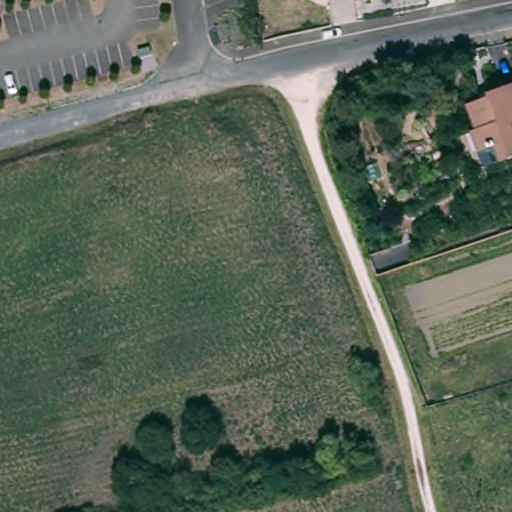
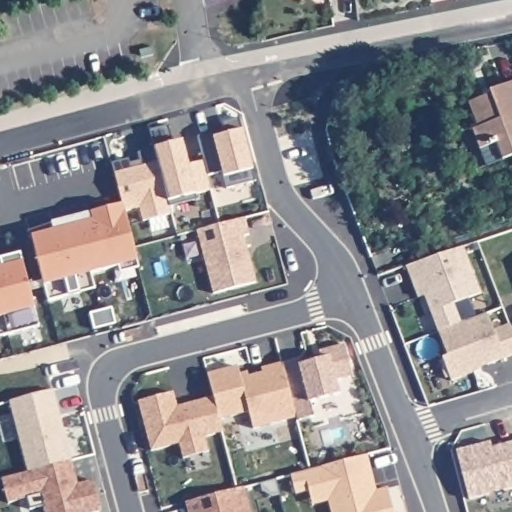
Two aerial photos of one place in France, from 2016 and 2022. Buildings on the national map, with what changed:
unchanged [(497,160),(491,144),(474,150),(467,130),(472,128),(462,103),(484,96),(483,91),(512,81),(512,154),(497,160)]
new [(111,163),(127,159),(129,164),(139,161),(138,152),(153,148),(149,130),(168,126),(172,142),(182,141),(188,167),(204,162),(198,137),(219,131),(217,124),(239,118),(242,130),(253,169),(254,181),(226,188),(223,176),(222,171),(207,175),(210,189),(195,192),(197,199),(169,207),(170,213),(143,220),(140,206),(123,212),(121,206),(111,163)]
new [(31,236),(52,231),(50,223),(121,206),(123,212),(136,261),(89,272),(94,287),(47,300),(44,286),(31,236)]
new [(242,220),(247,236),(242,237),(254,283),(212,295),(195,232),(242,220)]
new [(423,296),(417,297),(405,266),(462,247),(479,293),(453,302),(461,322),(436,332),(423,296)]
new [(0,260),(19,255),(38,326),(0,335),(0,260)]
new [(479,370),(449,382),(441,358),(446,357),(436,332),(484,313),(492,331),(508,325),(512,335),(512,354),(484,365),(479,367),(479,370)]
new [(296,360),(298,366),(319,360),(317,352),(343,346),(351,377),(334,381),(338,396),(309,403),(313,417),(295,422),(294,419),(280,365),(296,360)]
new [(238,376),(245,373),(246,377),(261,374),(260,370),(280,365),(294,419),(251,430),(247,413),(218,421),(205,375),(235,367),(238,376)]
new [(50,392),(69,462),(25,473),(7,403),(50,392)]
new [(173,392),(177,406),(212,397),(218,421),(220,432),(203,437),(207,451),(182,457),(178,443),(150,450),(138,402),(173,392)]
new [(489,442),(490,448),(512,443),(512,488),(468,500),(454,452),(489,442)]
new [(386,488),(393,512),(330,512),(328,501),(312,505),(308,490),(295,493),(290,475),(366,456),(374,486),(371,487),(371,492),(386,488)]
new [(74,478),(75,486),(91,482),(99,512),(43,512),(41,507),(28,511),(24,499),(5,504),(0,484),(0,480),(25,473),(69,462),(74,478)]
demolished [(273,472),(273,473),(275,482),(262,486),(260,476),(273,472)]
new [(184,502),(243,487),(249,512),(187,512),(184,502)]

